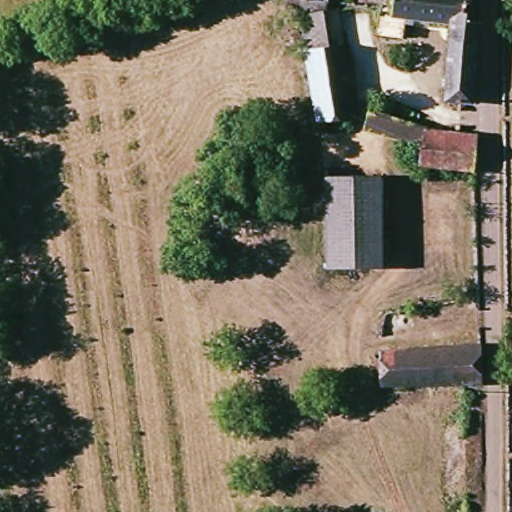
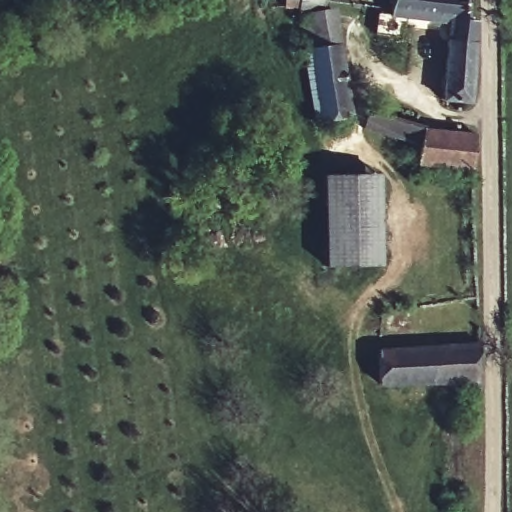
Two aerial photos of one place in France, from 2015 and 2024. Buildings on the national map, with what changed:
unchanged [(113,0),(137,0),(140,5),(119,13),(113,0)]
unchanged [(281,0),(465,0),(465,27),(472,28),(465,108),(440,107),(443,25),(384,19),(385,13),(316,9),(316,15),(287,13),(280,13),(281,0)]
unchanged [(310,128),(292,47),(287,26),(332,21),(337,42),(355,128),(310,128)]
unchanged [(418,166),(420,153),(365,128),(372,113),(428,131),(467,138),(467,170),(418,166)]
unchanged [(324,178),(370,178),(371,265),(325,265),(324,178)]
unchanged [(475,383),(371,387),(369,352),(475,346),(475,383)]

